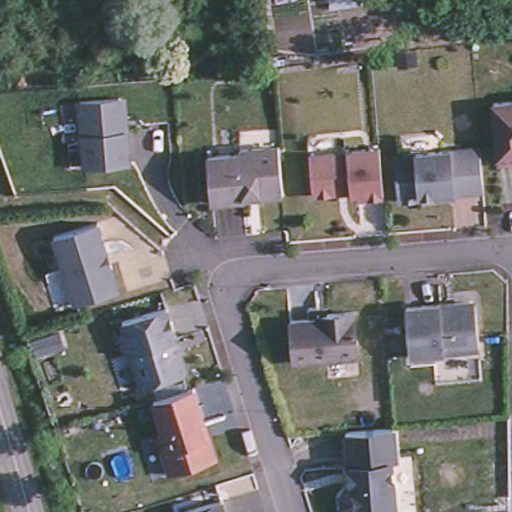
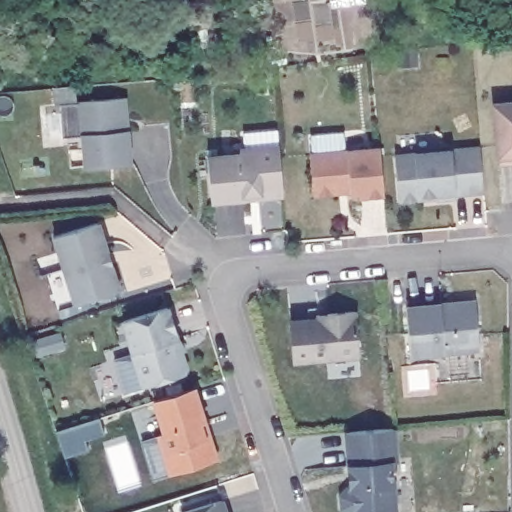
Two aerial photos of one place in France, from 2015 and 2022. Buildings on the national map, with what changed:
unchanged [(89,165),(83,100),(123,97),(129,101),(130,113),(131,129),(134,162),(89,165)]
unchanged [(498,98),(512,97),(512,158),(503,159),(498,98)]
unchanged [(215,196),(211,151),(244,148),(243,143),(246,143),(284,140),(288,190),(264,192),(249,193),(215,196)]
unchanged [(403,195),(399,150),(485,142),(488,180),(489,186),(459,188),(459,191),(442,193),(441,191),(425,193),(403,195)]
unchanged [(313,193),(309,153),(344,150),(379,147),(383,194),(358,196),(358,192),(350,192),(350,190),(336,191),(313,193)]
unchanged [(73,303),(63,267),(53,235),(96,221),(106,253),(109,262),(118,289),(73,303)]
unchanged [(480,300),(484,344),(438,348),(414,350),(410,301),(444,298),(459,297),(475,296),(480,300)]
unchanged [(187,369),(145,382),(134,346),(136,346),(126,315),(171,301),(181,333),(188,344),(184,345),(190,363),(187,369)]
unchanged [(363,351),(298,356),(294,315),(322,313),(321,309),(331,308),(359,306),(363,351)]
new [(60,335),(65,350),(38,358),(31,344),(60,335)]
unchanged [(168,474),(157,434),(163,433),(153,399),(193,386),(203,421),(208,436),(216,459),(168,474)]
new [(100,420),(106,438),(85,444),(88,454),(63,459),(58,435),(100,420)]
unchanged [(393,428),(396,462),(391,462),(394,510),(375,512),(346,512),(341,507),(339,495),(346,487),(349,487),(348,466),(345,432),(393,428)]
unchanged [(226,494),(231,512),(187,512),(185,506),(226,494)]

